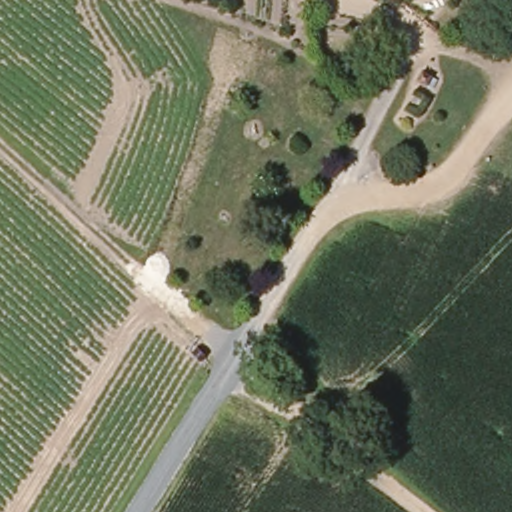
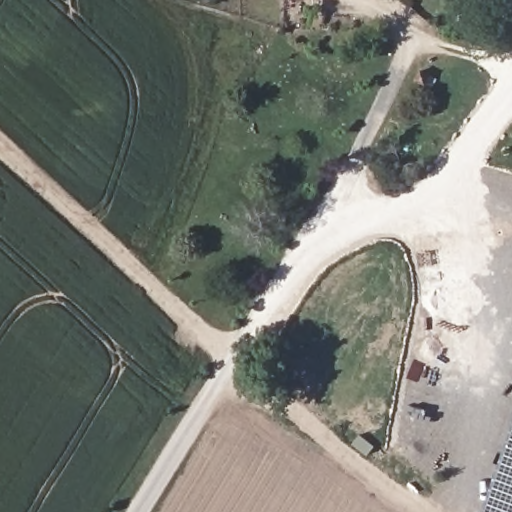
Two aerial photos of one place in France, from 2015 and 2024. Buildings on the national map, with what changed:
new [(512,432),(512,512),(484,512),(512,432)]

